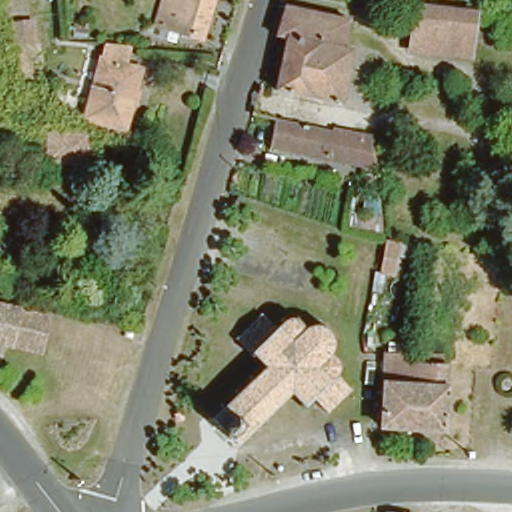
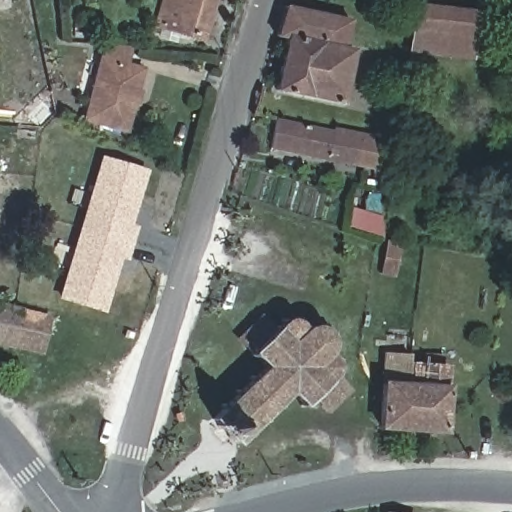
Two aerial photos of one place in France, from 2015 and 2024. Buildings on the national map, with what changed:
unchanged [(204,47),(155,32),(166,0),(217,0),(204,47)]
unchanged [(348,17),(343,47),(352,49),(342,101),(274,89),(285,38),(275,35),(284,5),(348,17)]
unchanged [(470,11),(468,34),(408,29),(411,5),(470,11)]
unchanged [(34,19),(46,82),(19,87),(10,20),(34,19)]
unchanged [(468,34),(466,54),(406,48),(408,29),(468,34)]
demolished [(81,48),(69,49),(67,35),(80,35),(81,48)]
unchanged [(133,47),(126,67),(141,72),(124,130),(85,119),(107,46),(133,47)]
demolished [(76,99),(75,123),(47,121),(49,96),(76,99)]
unchanged [(269,147),(274,120),(333,132),(334,130),(347,131),(340,161),(269,147)]
demolished [(114,133),(111,165),(39,156),(42,125),(114,133)]
unchanged [(369,184),(369,166),(340,161),(347,131),(375,135),(377,168),(378,184),(369,184)]
new [(100,155),(148,170),(116,270),(118,270),(105,313),(56,298),(100,155)]
unchanged [(353,208),(379,210),(382,235),(352,226),(353,208)]
unchanged [(401,241),(395,275),(380,273),(386,239),(401,241)]
unchanged [(4,343),(0,342),(0,308),(13,311),(44,318),(35,350),(4,343)]
unchanged [(297,315),(296,318),(297,321),(301,323),(314,322),(316,323),(319,321),(321,323),(322,325),(330,333),(334,333),(334,336),(332,337),(332,351),(334,355),(342,358),(342,361),(339,361),(338,365),(339,366),(338,370),(353,384),(330,407),(316,393),(309,400),(311,401),(308,404),(307,402),(304,405),(302,402),(303,400),(292,390),(281,400),(283,402),(280,405),(278,403),(267,414),(269,416),(265,420),(263,418),(253,428),(254,430),(252,433),(249,432),(239,440),(214,417),(223,408),(222,406),(224,403),(227,405),(234,397),(233,395),(234,392),(238,393),(245,385),(250,380),(249,376),(252,375),(254,376),(264,366),(265,363),(256,355),(254,356),(251,353),(253,351),(239,337),(261,316),(269,323),(272,321),(274,323),(279,321),(279,319),(281,318),(284,320),(293,316),(294,315),(297,315)]
unchanged [(403,364),(413,365),(438,365),(444,366),(444,371),(440,430),(379,426),(381,383),(382,363),(403,364)]
unchanged [(502,382),(503,382),(504,382),(504,383),(505,383),(506,384),(506,385),(507,386),(507,387),(507,388),(507,389),(507,390),(506,391),(505,392),(504,392),(504,393),(503,393),(502,394),(501,394),(500,394),(499,393),(498,393),(498,392),(497,392),(497,391),(496,391),(496,390),(495,390),(495,389),(495,388),(495,387),(495,386),(496,385),(496,384),(497,383),(498,382),(499,382),(500,382),(501,382),(502,382)]

